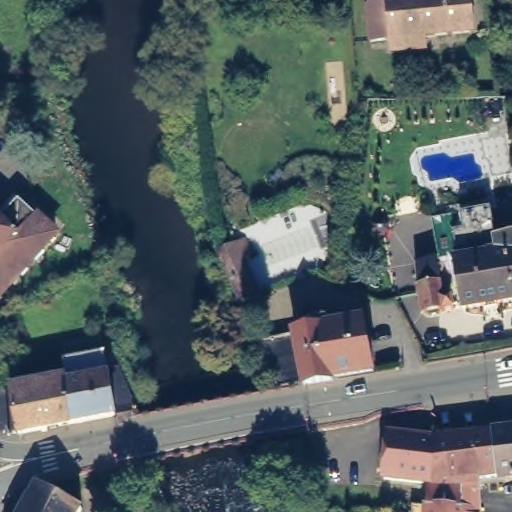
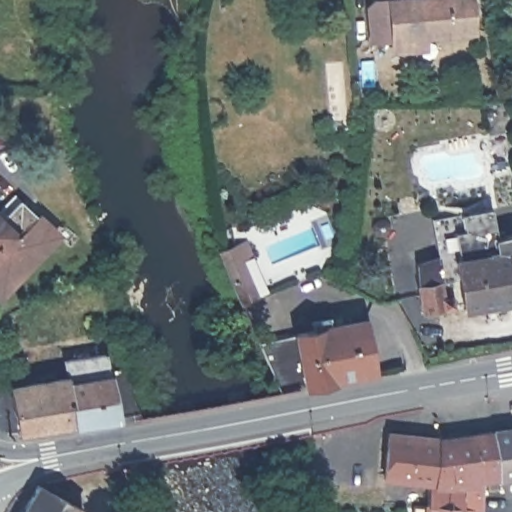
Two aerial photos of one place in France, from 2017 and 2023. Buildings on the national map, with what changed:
unchanged [(371,6),(374,1),(383,0),(471,0),(474,33),(375,41),(371,6)]
unchanged [(383,154),(369,152),(371,134),(384,135),(383,154)]
unchanged [(0,217),(18,195),(61,234),(3,298),(0,295),(0,217)]
unchanged [(489,253),(497,252),(494,238),(512,234),(512,303),(496,305),(485,308),(464,312),(455,260),(489,255),(489,253)]
unchanged [(239,320),(231,300),(221,276),(218,267),(223,265),(245,255),(252,271),(242,275),(249,294),(258,312),(239,320)]
unchanged [(416,264),(434,259),(444,298),(451,298),(453,306),(423,312),(418,284),(416,264)]
unchanged [(324,383),(324,380),(299,384),(276,336),(331,325),(330,317),(347,314),(349,322),(383,315),(394,366),(354,374),(354,377),(324,383)]
unchanged [(108,371),(113,370),(121,369),(130,386),(120,388),(111,390),(116,417),(73,425),(66,378),(63,362),(104,354),(108,371)]
unchanged [(73,425),(18,435),(11,389),(36,383),(35,379),(53,376),(54,380),(66,378),(73,425)]
unchanged [(512,478),(511,475),(496,477),(491,433),(512,431),(512,478)]
unchanged [(413,506),(427,506),(429,483),(435,439),(491,433),(496,477),(479,479),(479,512),(413,512),(413,506)]
unchanged [(429,483),(384,479),(388,435),(435,439),(429,483)]
unchanged [(30,494),(30,495),(38,482),(83,507),(80,512),(20,512),(30,494)]

